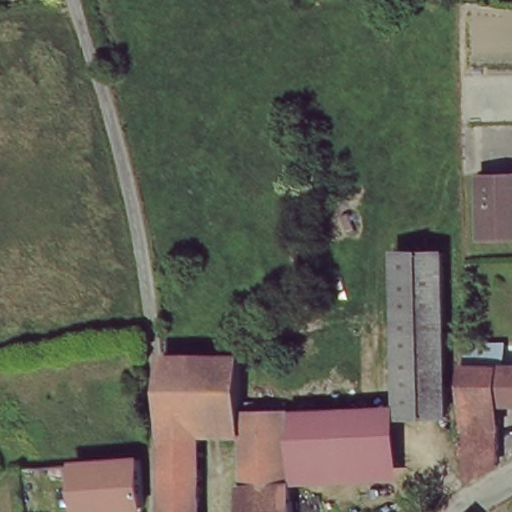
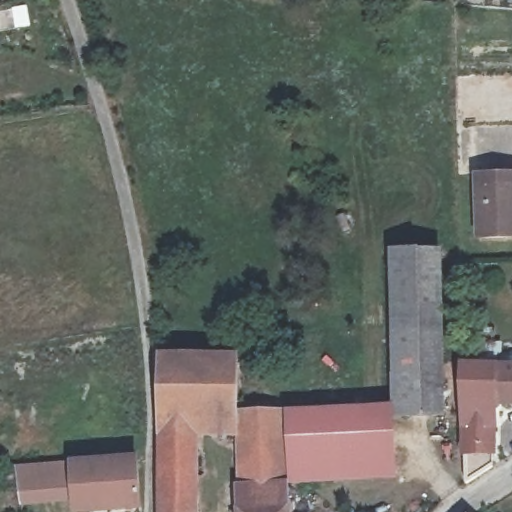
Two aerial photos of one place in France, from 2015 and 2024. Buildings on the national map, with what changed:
unchanged [(512,173),(512,235),(479,234),(478,173),(512,173)]
unchanged [(439,247),(442,409),(395,410),(393,249),(439,247)]
unchanged [(460,343),(504,340),(505,365),(462,368),(460,343)]
unchanged [(237,367),(239,401),(284,401),(290,512),(240,512),(237,431),(195,432),(196,512),(166,512),(166,497),(158,352),(236,351),(237,367)]
unchanged [(505,365),(512,365),(512,402),(497,402),(496,390),(462,391),(462,368),(505,365)]
unchanged [(496,390),(497,402),(496,427),(464,427),(462,391),(496,390)]
unchanged [(388,404),(389,453),(293,455),(291,407),(388,404)]
unchanged [(496,427),(496,470),(467,491),(464,427),(496,427)]
unchanged [(108,461),(139,458),(143,503),(110,506),(80,510),(76,465),(108,461)]

